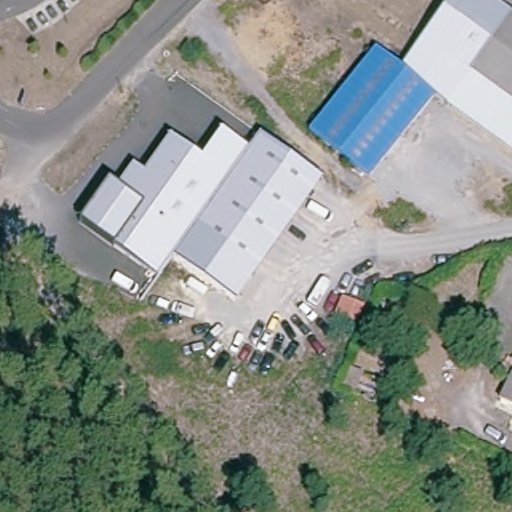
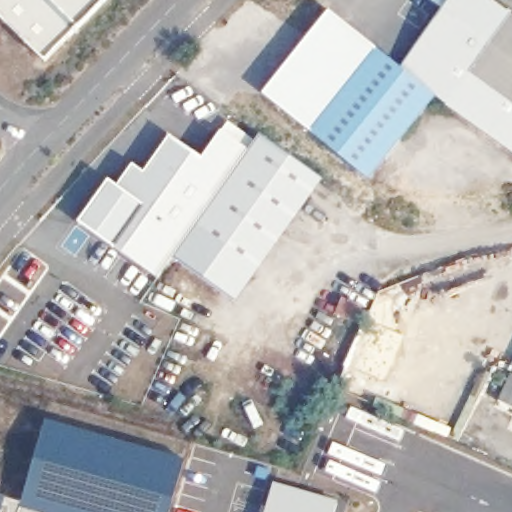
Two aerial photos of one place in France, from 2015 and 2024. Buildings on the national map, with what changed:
new [(45,58),(0,13),(0,0),(104,0),(45,58)]
unchanged [(451,0),(496,0),(512,12),(512,154),(448,105),(437,95),(436,93),(414,75),(402,64),(451,0)]
new [(309,126),(307,129),(262,94),(328,10),(376,48),(372,53),(309,126)]
demolished [(273,38),(259,55),(242,41),(255,24),(273,38)]
unchanged [(433,99),(368,175),(309,126),(372,53),(379,45),(380,44),(402,64),(414,75),(436,93),(437,95),(433,99)]
unchanged [(117,186),(132,165),(143,173),(169,135),(202,157),(221,130),(248,148),(258,134),(323,180),(236,302),(172,256),(156,278),(81,220),(109,180),(117,186)]
unchanged [(346,323),(327,315),(335,299),(354,308),(346,323)]
new [(185,458),(169,512),(39,512),(18,505),(44,418),(185,458)]
new [(335,512),(265,512),(275,480),(339,500),(335,512)]
new [(0,508),(0,495),(4,496),(0,508)]

